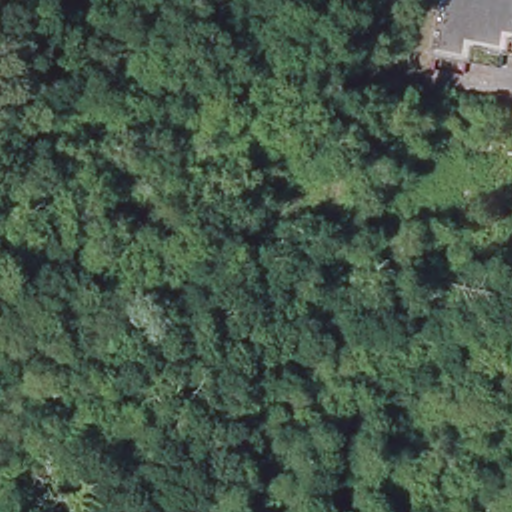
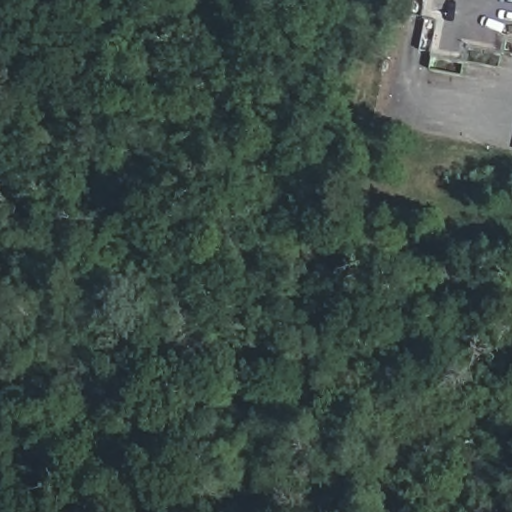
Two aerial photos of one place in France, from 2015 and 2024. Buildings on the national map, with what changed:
[]

